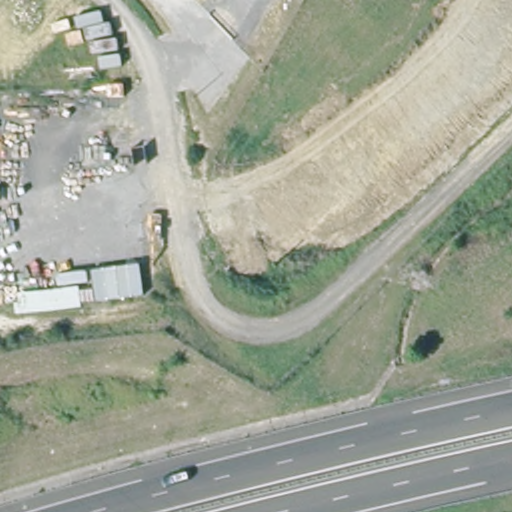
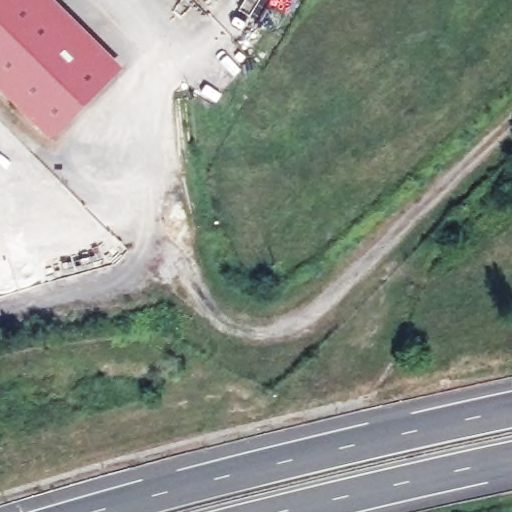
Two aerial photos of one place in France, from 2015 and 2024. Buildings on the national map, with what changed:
new [(0,91),(0,0),(55,0),(123,67),(50,142),(0,91)]
demolished [(140,269),(140,303),(95,307),(91,275),(140,269)]

